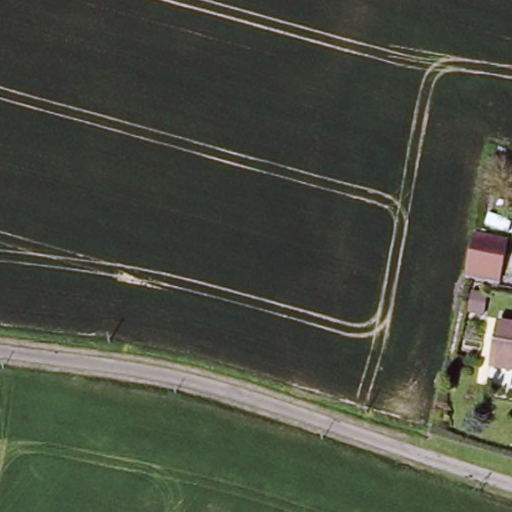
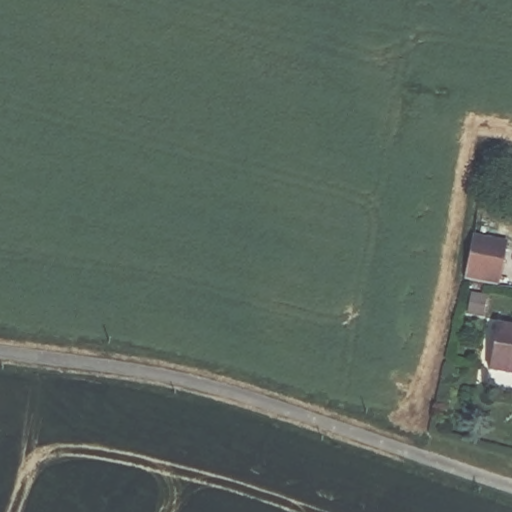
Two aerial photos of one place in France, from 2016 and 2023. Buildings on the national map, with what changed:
unchanged [(473,235),(507,241),(499,284),(466,278),(473,235)]
unchanged [(500,330),(512,332),(512,377),(492,373),(500,330)]

